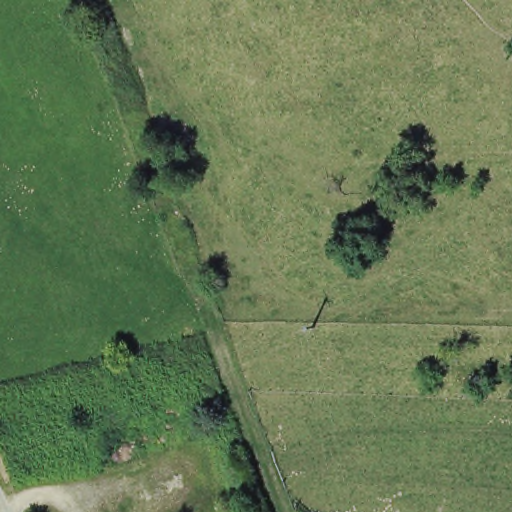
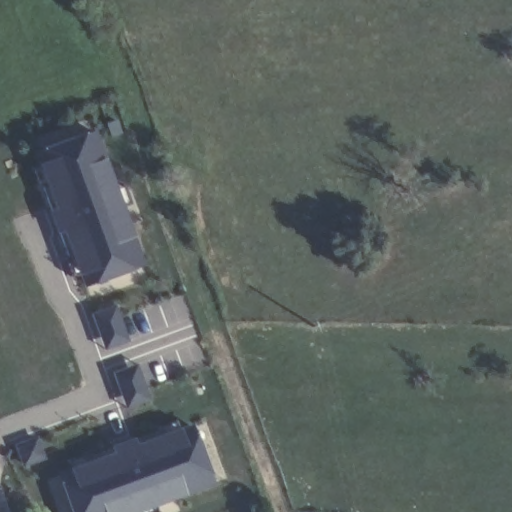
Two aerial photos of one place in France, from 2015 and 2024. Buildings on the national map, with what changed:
new [(68,260),(71,259),(60,229),(63,228),(60,216),(56,218),(45,187),(42,189),(41,188),(35,170),(45,167),(41,155),(97,135),(118,191),(128,187),(135,206),(125,210),(145,266),(89,287),(85,275),(75,279),(68,261),(68,260)]
new [(130,343),(105,352),(91,315),(116,305),(130,343)]
new [(138,365),(151,402),(127,410),(113,374),(138,365)]
new [(115,452),(111,445),(135,437),(138,444),(192,425),(215,486),(157,506),(159,512),(72,512),(56,473),(115,452)]
new [(37,437),(45,460),(25,468),(15,445),(37,437)]

